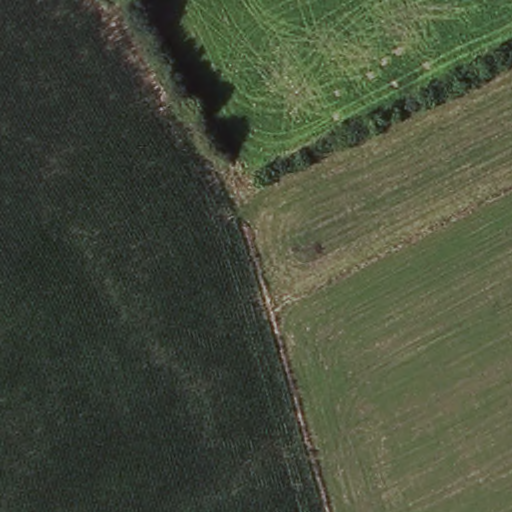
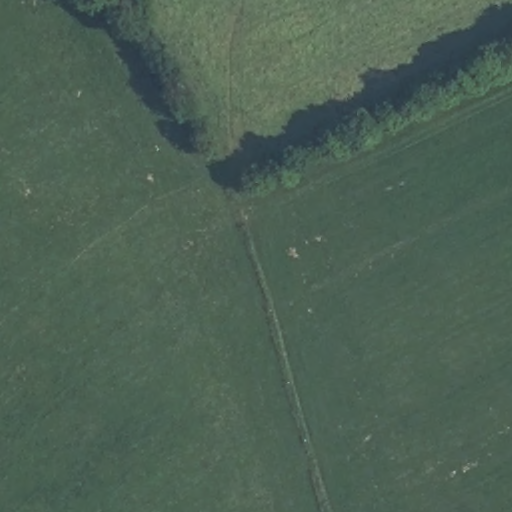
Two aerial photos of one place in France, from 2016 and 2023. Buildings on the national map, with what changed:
[]

